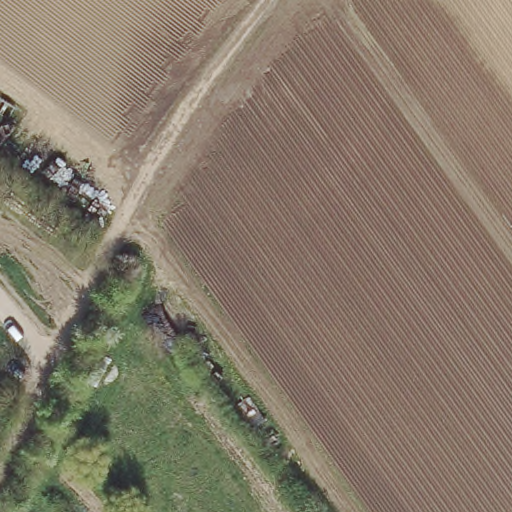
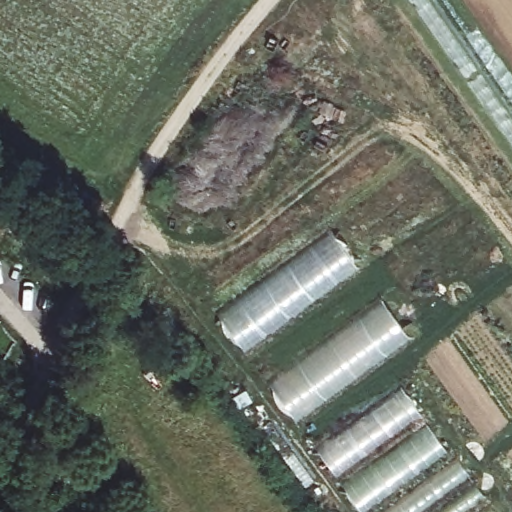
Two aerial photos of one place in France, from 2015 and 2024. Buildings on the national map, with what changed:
new [(358,270),(245,353),(217,315),(330,233),(358,270)]
new [(407,339),(297,423),(269,385),(381,301),(407,339)]
demolished [(200,377),(301,512),(277,512),(185,390),(200,377)]
new [(495,512),(361,512),(315,451),(402,387),(495,512)]

